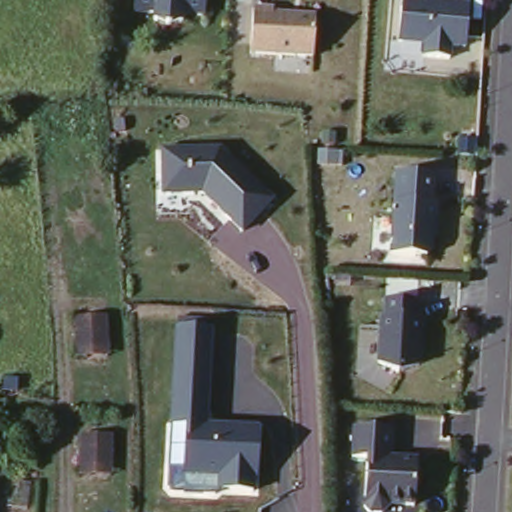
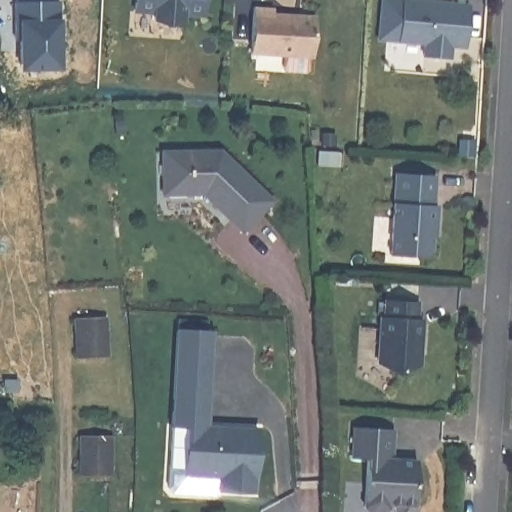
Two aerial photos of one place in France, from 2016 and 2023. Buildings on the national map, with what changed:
unchanged [(204,16),(137,16),(137,0),(204,0),(204,16)]
unchanged [(469,2),(466,45),(453,44),(451,55),(423,56),(423,40),(401,39),(405,0),(429,0),(469,2)]
new [(59,1),(61,69),(27,70),(21,65),(20,41),(16,40),(16,2),(59,1)]
unchanged [(311,61),(251,57),(254,3),(277,5),(275,14),(312,15),(311,61)]
unchanged [(273,201),(242,235),(201,195),(161,196),(161,150),(219,149),(273,201)]
unchanged [(435,171),(433,252),(394,251),(396,171),(435,171)]
unchanged [(387,298),(418,301),(423,319),(419,365),(382,365),(387,298)]
unchanged [(81,315),(112,312),(116,342),(85,345),(81,315)]
unchanged [(175,329),(211,331),(210,424),(259,426),(257,491),(217,490),(216,477),(183,474),(182,428),(172,424),(175,329)]
unchanged [(355,421),(390,423),(390,455),(417,458),(415,503),(368,500),(369,461),(354,454),(355,421)]
unchanged [(88,432),(117,431),(118,461),(89,462),(88,432)]

